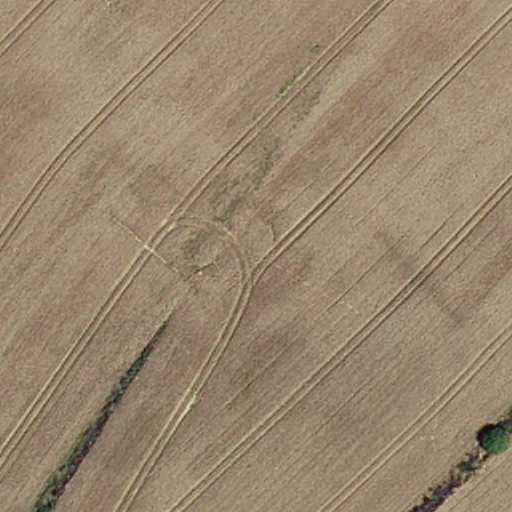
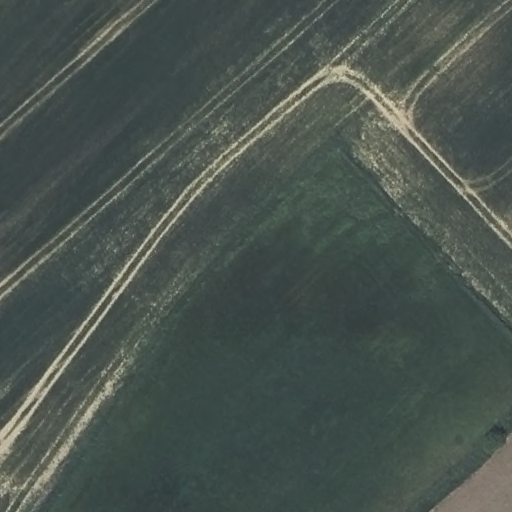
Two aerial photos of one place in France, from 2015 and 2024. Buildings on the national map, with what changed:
[]

